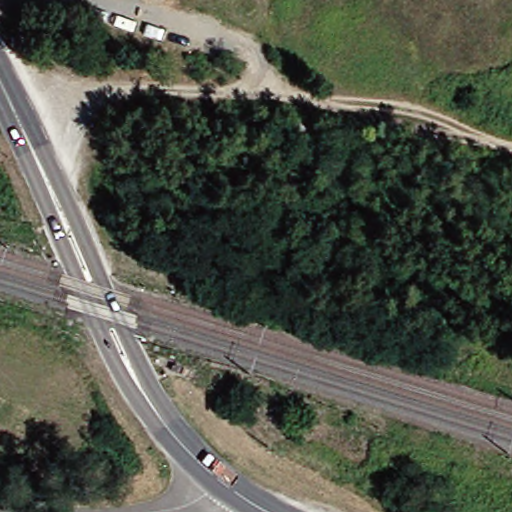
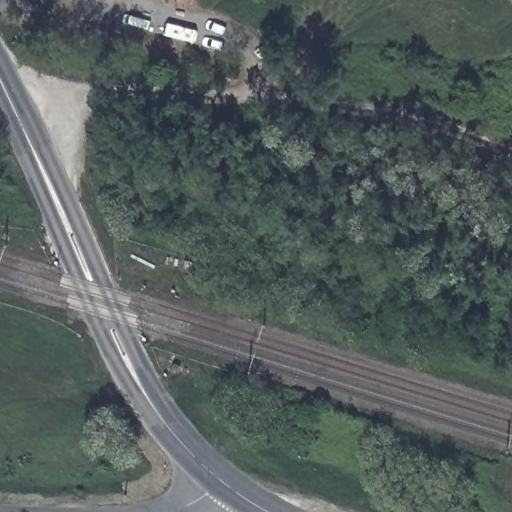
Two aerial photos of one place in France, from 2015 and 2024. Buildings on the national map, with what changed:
unchanged [(236,375),(233,388),(245,392),(240,409),(229,405),(224,417),(202,411),(213,369),(236,375)]
unchanged [(268,412),(264,422),(254,418),(258,408),(268,412)]

